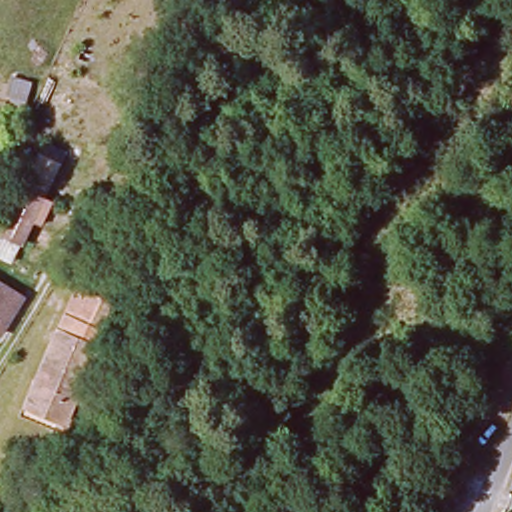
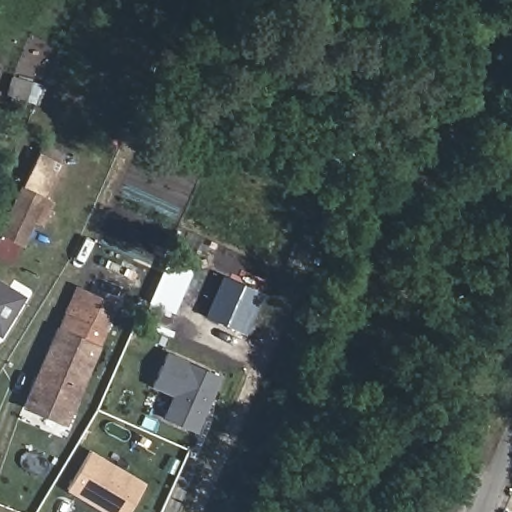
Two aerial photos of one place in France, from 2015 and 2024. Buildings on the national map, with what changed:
unchanged [(40,230),(32,224),(11,265),(0,260),(0,226),(18,189),(51,203),(40,230)]
new [(246,332),(206,315),(223,276),(263,294),(246,332)]
unchanged [(24,293),(2,330),(0,330),(0,280),(24,293)]
unchanged [(49,368),(80,304),(106,315),(62,408),(43,400),(36,396),(49,368)]
new [(193,436),(161,422),(171,399),(150,390),(165,355),(218,379),(211,397),(203,414),(193,436)]
new [(140,487),(125,512),(105,512),(65,489),(85,455),(140,487)]

